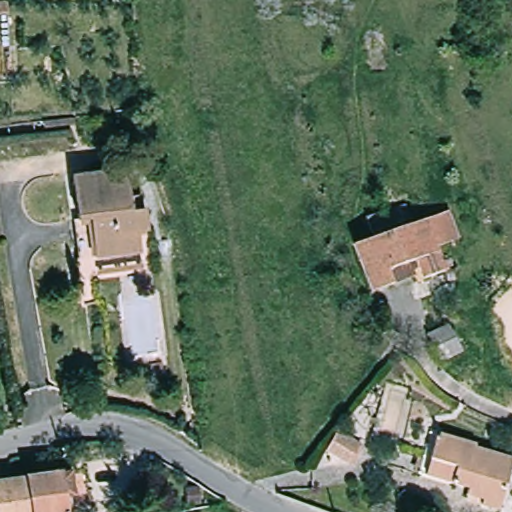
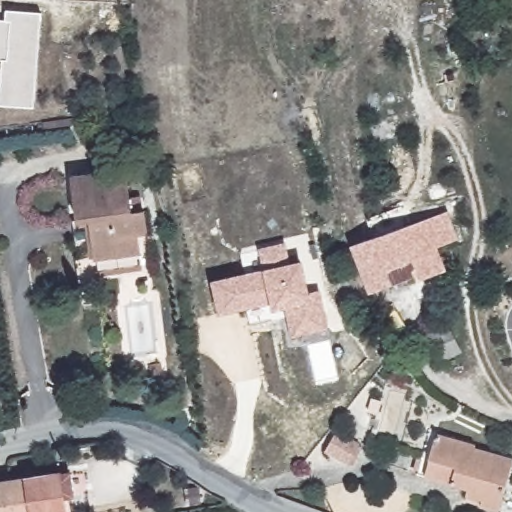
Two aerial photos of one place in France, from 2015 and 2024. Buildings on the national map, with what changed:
demolished [(10,10),(0,11),(0,0),(9,0),(10,10)]
new [(2,22),(2,9),(40,12),(33,107),(4,105),(8,56),(0,56),(0,22),(2,22)]
unchanged [(75,127),(43,131),(42,122),(74,118),(75,127)]
unchanged [(86,276),(84,262),(78,221),(83,220),(77,178),(130,170),(134,200),(148,198),(149,211),(152,232),(140,234),(143,254),(145,268),(86,276)]
unchanged [(372,293),(355,246),(377,238),(369,218),(410,205),(416,225),(451,212),(461,240),(439,247),(447,270),(425,279),(422,273),(372,293)]
new [(303,261),(310,295),(321,292),(330,329),(292,338),(286,308),(273,311),(271,303),(219,315),(212,281),(264,270),(259,248),(287,242),(291,264),(303,261)]
unchanged [(460,353),(441,362),(428,335),(447,326),(460,353)]
demolished [(494,335),(512,328),(512,342),(499,347),(494,335)]
unchanged [(162,374),(152,375),(151,363),(160,362),(162,374)]
unchanged [(334,432),(360,446),(349,466),(323,451),(334,432)]
unchanged [(466,493),(467,488),(418,473),(423,456),(430,458),(437,434),(475,446),(475,448),(512,460),(496,510),(481,506),(463,500),(466,493)]
unchanged [(60,474),(70,473),(73,495),(63,497),(65,512),(0,512),(0,483),(60,474)]

